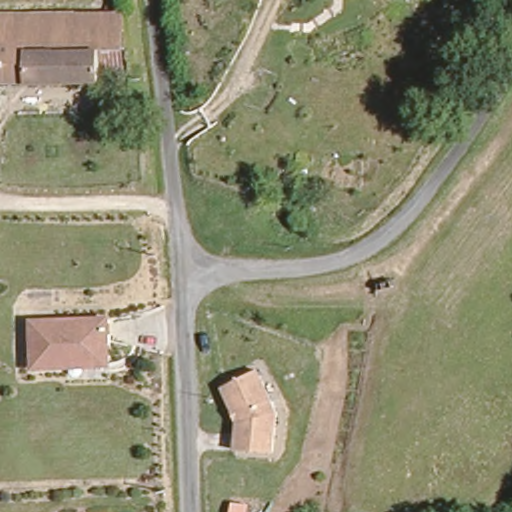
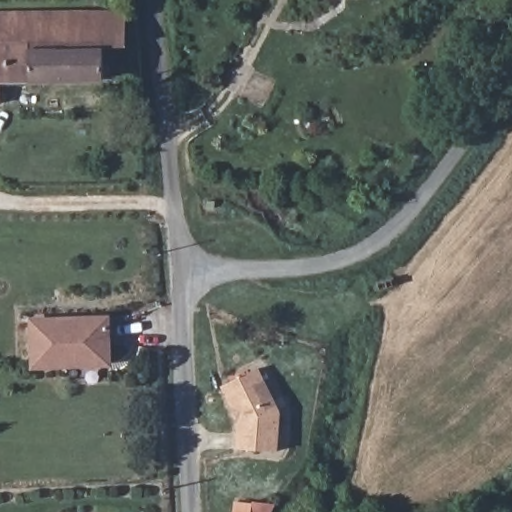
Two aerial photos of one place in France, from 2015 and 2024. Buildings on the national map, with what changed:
unchanged [(105,82),(2,82),(2,105),(0,105),(0,13),(105,12),(105,82)]
unchanged [(123,12),(122,82),(105,82),(105,12),(123,12)]
unchanged [(66,364),(30,365),(29,321),(106,317),(106,357),(106,363),(66,364)]
unchanged [(245,421),(229,386),(263,370),(284,414),(281,452),(243,450),(245,421)]

